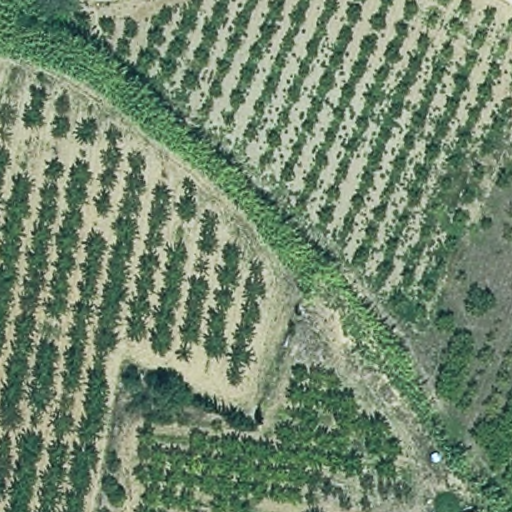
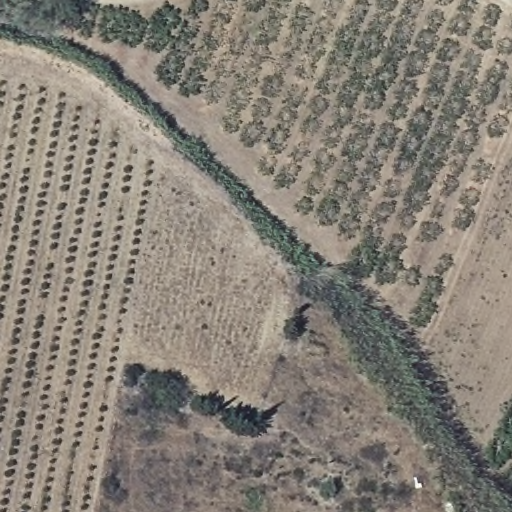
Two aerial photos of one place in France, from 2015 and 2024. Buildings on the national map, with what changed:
unchanged [(466,512),(437,512),(437,495),(457,497),(466,512)]

